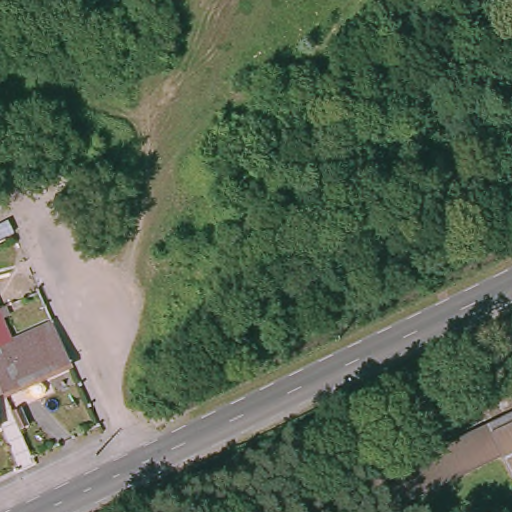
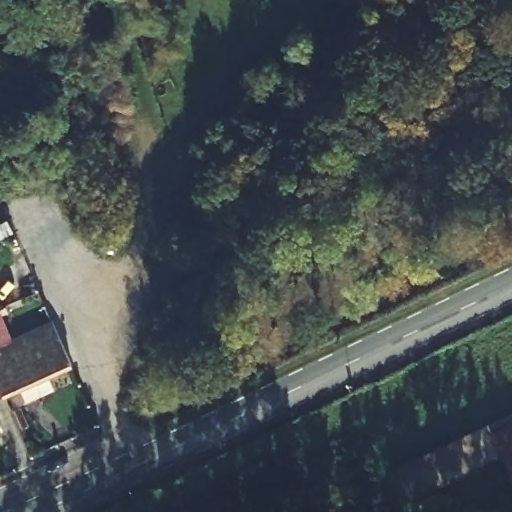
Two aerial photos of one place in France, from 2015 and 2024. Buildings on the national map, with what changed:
unchanged [(50,322),(69,365),(1,395),(0,391),(0,344),(50,322)]
unchanged [(9,412),(18,408),(26,426),(18,430),(9,412)]
unchanged [(512,466),(508,457),(407,505),(392,472),(512,413),(512,466)]

